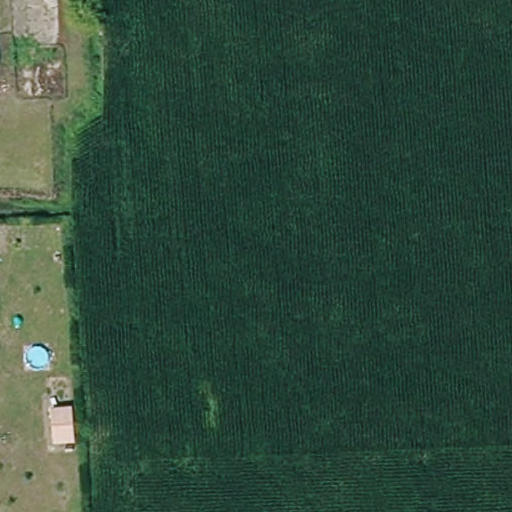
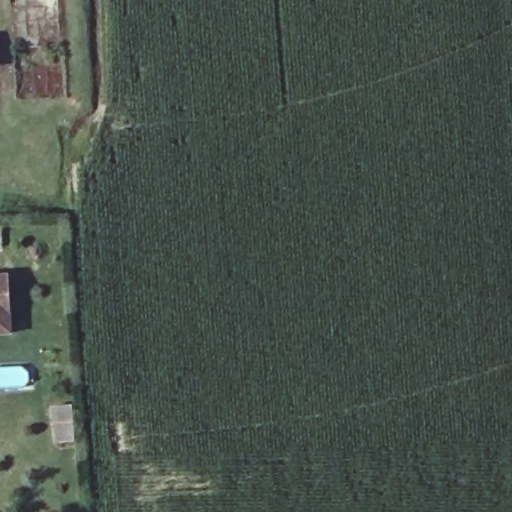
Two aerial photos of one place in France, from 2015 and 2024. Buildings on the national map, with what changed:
new [(0,276),(8,275),(12,334),(0,334),(0,276)]
demolished [(0,319),(0,294),(1,319),(0,319)]

